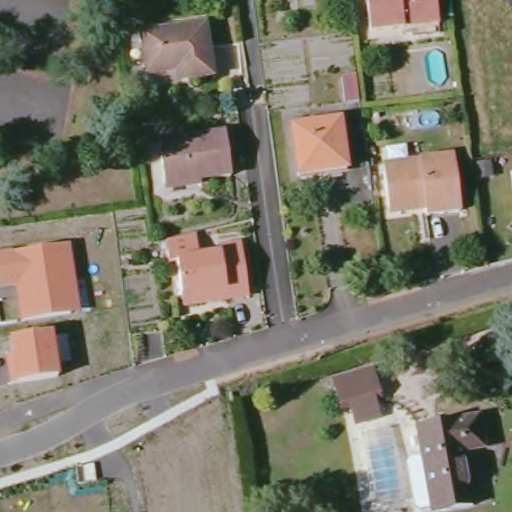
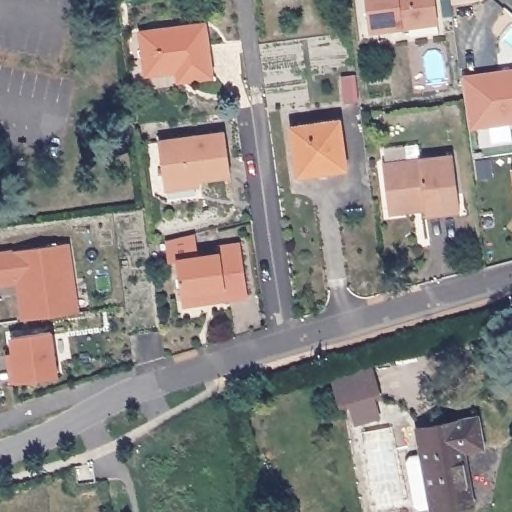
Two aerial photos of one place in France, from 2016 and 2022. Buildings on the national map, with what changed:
unchanged [(366,27),(363,0),(433,0),(436,29),(408,32),(407,22),(366,27)]
unchanged [(181,64),(145,70),(138,29),(202,21),(208,72),(183,75),(181,64)]
new [(512,69),(512,117),(510,117),(510,122),(470,128),(462,76),(481,73),(500,71),(512,69)]
unchanged [(347,105),(344,79),(359,77),(360,85),(362,103),(347,105)]
unchanged [(295,129),(340,122),(347,169),(301,177),(295,129)]
unchanged [(160,144),(227,134),(233,176),(166,185),(160,144)]
unchanged [(391,211),(385,165),(455,156),(462,212),(427,217),(426,211),(392,215),(391,211)]
unchanged [(177,262),(170,263),(167,242),(198,234),(201,258),(223,255),(222,247),(242,244),(250,296),(230,300),(185,306),(183,302),(177,262)]
unchanged [(70,245),(79,313),(20,322),(15,288),(0,288),(0,252),(70,245)]
unchanged [(60,378),(15,385),(15,382),(9,385),(6,357),(10,352),(8,337),(53,334),(60,378)]
unchanged [(383,398),(377,400),(383,421),(357,427),(350,407),(341,410),(330,378),(372,367),(383,398)]
unchanged [(418,433),(478,422),(483,453),(464,457),(473,509),(456,512),(432,512),(418,433)]

